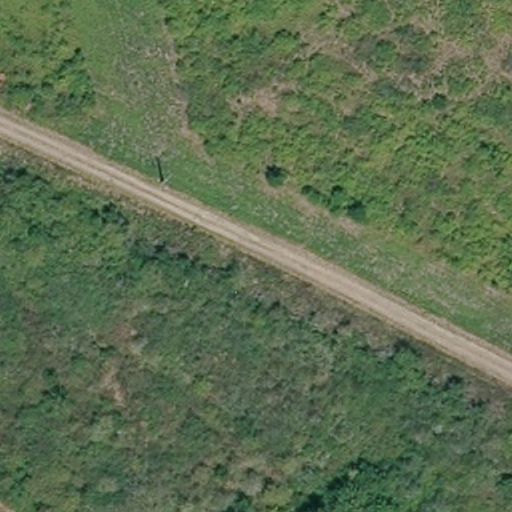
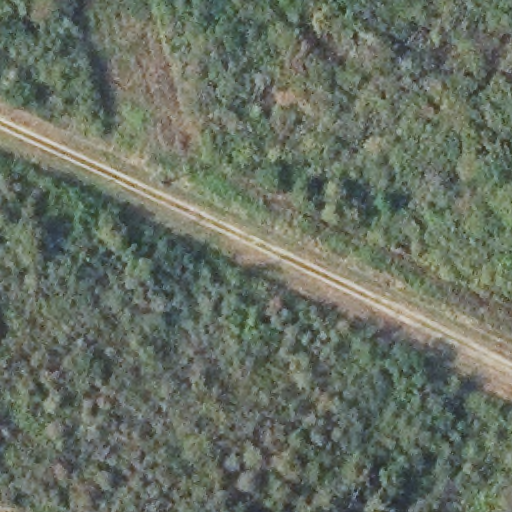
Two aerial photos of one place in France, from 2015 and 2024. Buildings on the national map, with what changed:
[]

